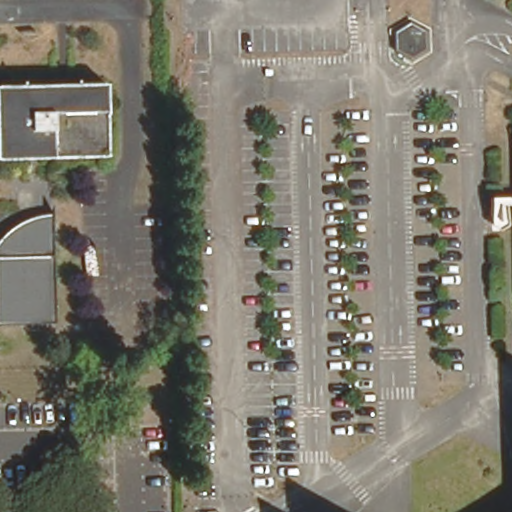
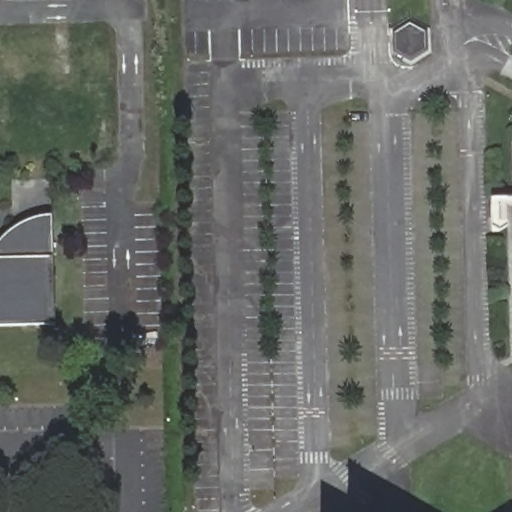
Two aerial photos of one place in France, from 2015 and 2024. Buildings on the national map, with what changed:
unchanged [(428,33),(429,53),(413,64),(394,55),(393,35),(409,24),(428,33)]
demolished [(69,86),(106,85),(106,113),(108,158),(51,159),(38,159),(31,159),(0,160),(0,88),(57,87),(69,86)]
unchanged [(13,218),(21,214),(30,210),(40,209),(47,209),(50,320),(0,321),(0,228),(4,224),(13,218)]

